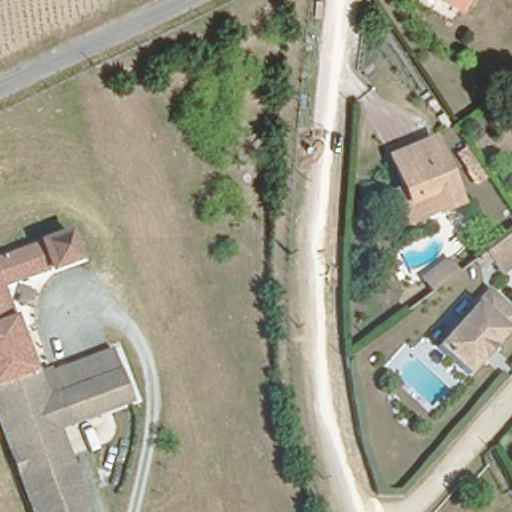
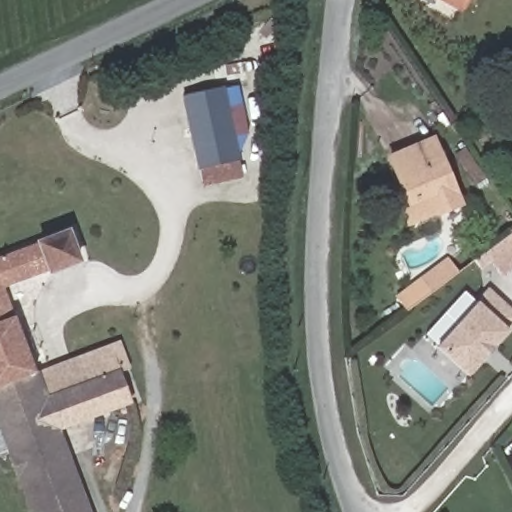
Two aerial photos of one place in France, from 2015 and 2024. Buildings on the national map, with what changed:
unchanged [(457,5),(446,0),(460,0),(457,5)]
new [(250,143),(236,146),(242,177),(202,186),(183,95),(237,83),(250,143)]
unchanged [(425,136),(453,198),(432,208),(427,207),(414,213),(385,156),(425,136)]
unchanged [(512,226),(512,262),(492,274),(471,254),(512,226)]
unchanged [(79,261),(1,289),(0,287),(0,253),(68,228),(79,261)]
new [(449,258),(459,271),(431,292),(422,278),(449,258)]
unchanged [(487,285),(511,308),(503,318),(505,322),(491,336),(492,339),(479,353),(475,355),(464,368),(436,342),(483,289),(487,285)]
unchanged [(18,332),(0,339),(0,287),(1,289),(18,332)]
unchanged [(56,430),(74,478),(27,496),(0,425),(0,339),(18,332),(33,372),(56,430)]
unchanged [(33,372),(111,345),(131,402),(56,430),(33,372)]
unchanged [(87,512),(34,512),(27,496),(74,478),(87,512)]

